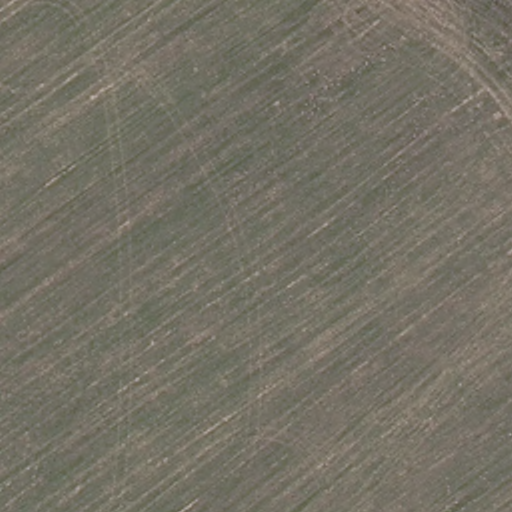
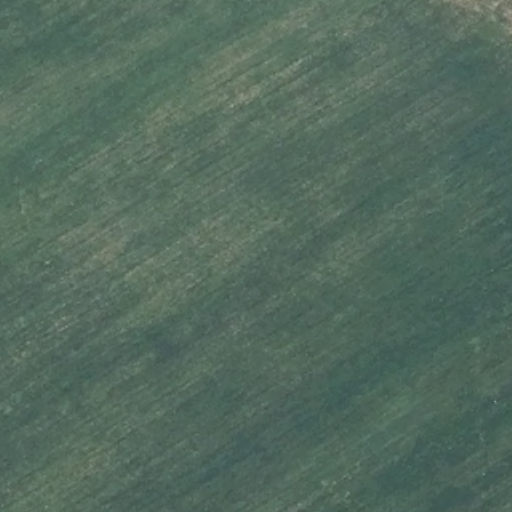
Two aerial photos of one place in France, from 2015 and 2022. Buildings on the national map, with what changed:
[]

